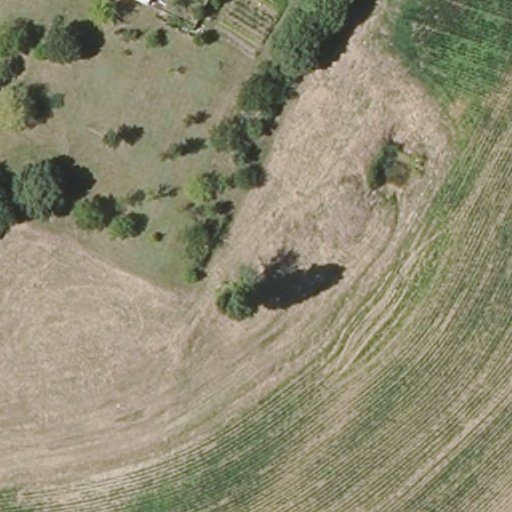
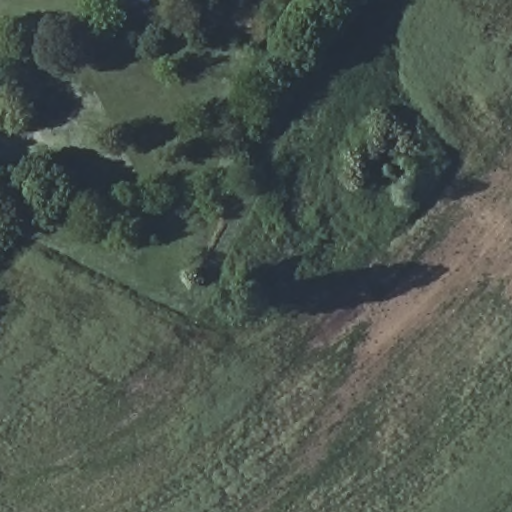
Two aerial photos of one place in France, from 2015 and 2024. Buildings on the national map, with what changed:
unchanged [(154,8),(138,0),(156,0),(154,8)]

